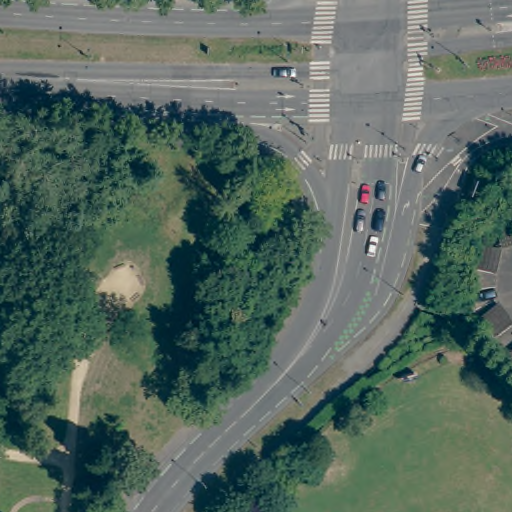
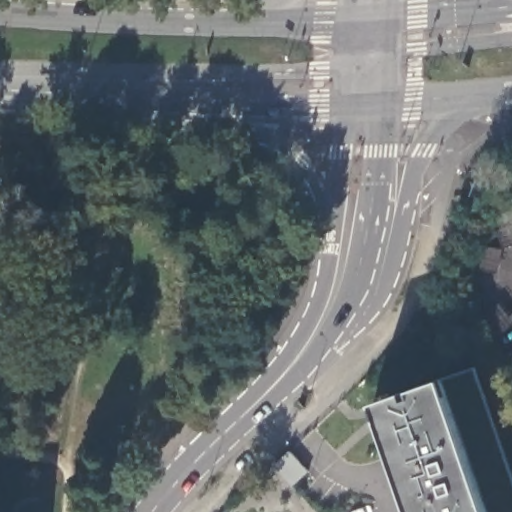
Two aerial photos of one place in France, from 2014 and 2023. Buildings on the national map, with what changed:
unchanged [(480,255),(486,230),(505,235),(499,212),(512,209),(512,240),(510,241),(505,262),(480,255)]
unchanged [(479,316),(499,300),(512,316),(512,325),(496,338),(479,316)]
unchanged [(508,353),(512,350),(512,359),(508,353)]
new [(475,368),(512,474),(512,512),(410,512),(372,403),(475,368)]
new [(288,450),(307,470),(291,485),(273,464),(288,450)]

